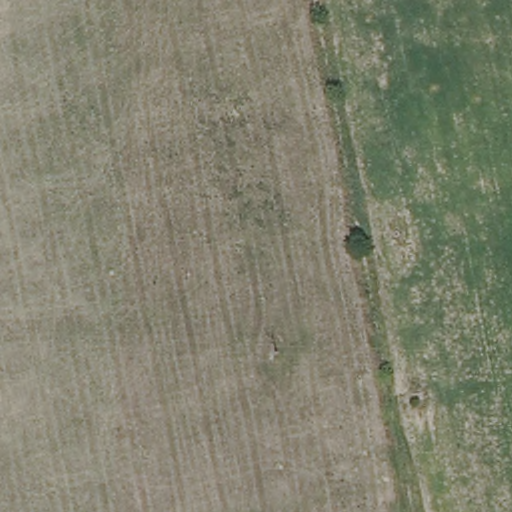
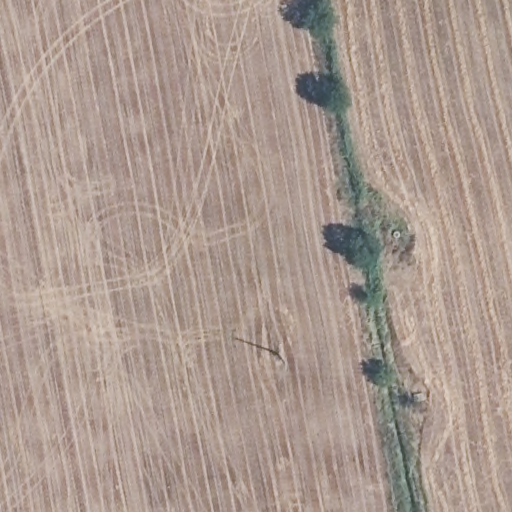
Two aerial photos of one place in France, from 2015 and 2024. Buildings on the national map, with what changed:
unchanged [(421,392),(423,400),(413,401),(412,394),(421,392)]

